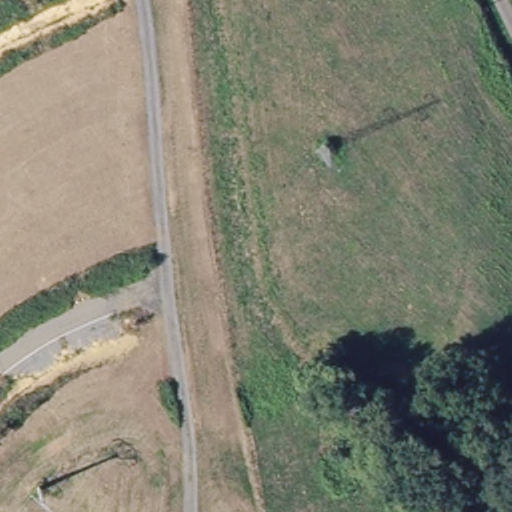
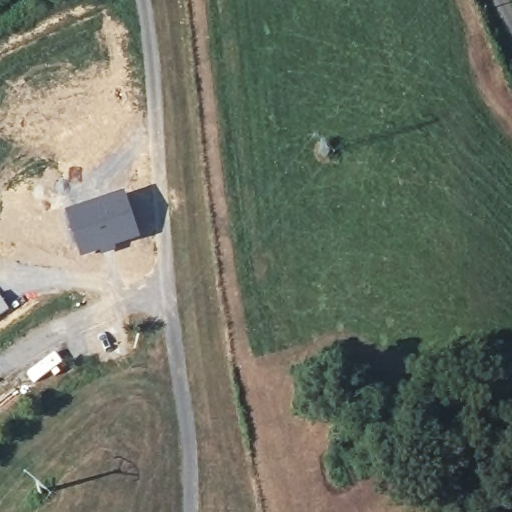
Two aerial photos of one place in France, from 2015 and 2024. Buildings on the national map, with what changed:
new [(125,190),(141,237),(108,250),(81,257),(65,211),(125,190)]
new [(8,307),(0,313),(0,295),(8,307)]

